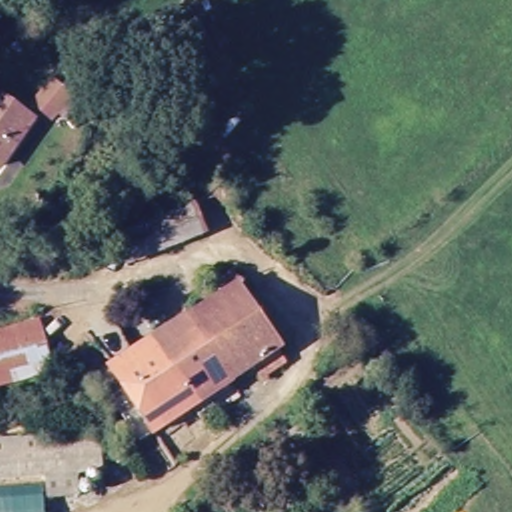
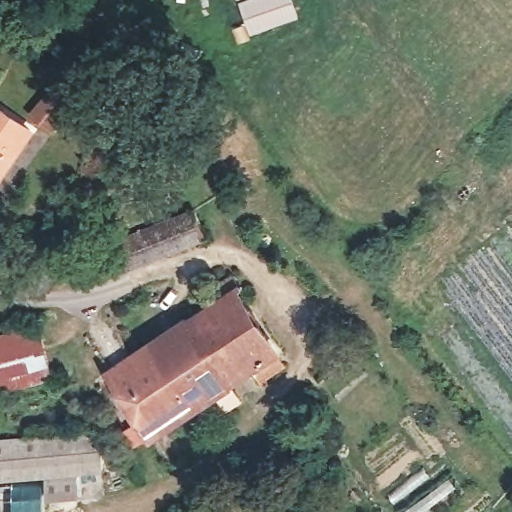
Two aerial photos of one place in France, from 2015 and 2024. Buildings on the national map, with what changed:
new [(238,2),(237,0),(242,0),(238,2)]
new [(242,0),(292,0),(299,18),(250,36),(238,2),(242,0)]
unchanged [(64,125),(50,141),(31,125),(44,108),(64,125)]
unchanged [(0,179),(0,125),(25,143),(0,179)]
unchanged [(209,234),(134,269),(121,237),(195,203),(209,234)]
unchanged [(224,295),(218,288),(233,278),(292,363),(279,372),(283,380),(272,387),(258,364),(237,379),(193,317),(224,295)]
unchanged [(193,317),(237,379),(223,388),(197,406),(155,343),(193,317)]
unchanged [(50,380),(0,391),(0,339),(39,333),(50,380)]
unchanged [(94,393),(91,389),(119,372),(115,368),(155,343),(197,406),(162,428),(155,433),(124,391),(104,405),(94,393)]
unchanged [(101,476),(76,478),(76,501),(49,502),(50,480),(0,482),(0,442),(24,441),(98,436),(101,476)]
unchanged [(43,512),(0,512),(0,488),(40,485),(43,512)]

